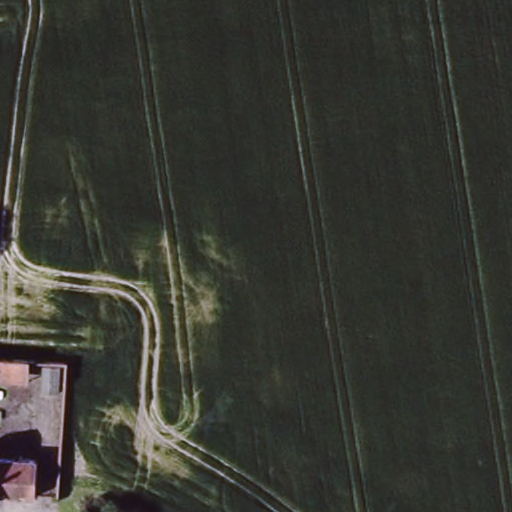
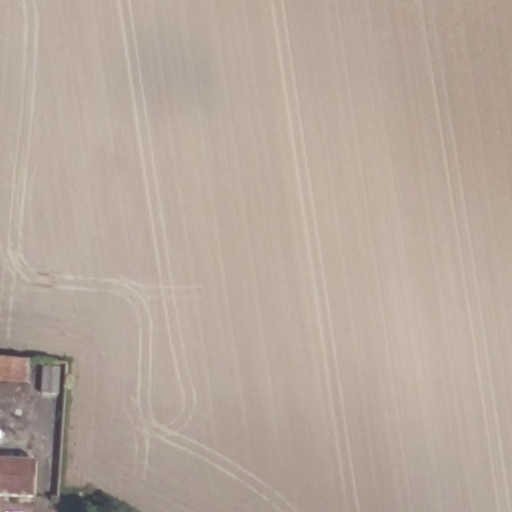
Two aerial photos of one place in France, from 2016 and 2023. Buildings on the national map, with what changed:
unchanged [(0,351),(38,352),(37,385),(0,383),(0,351)]
unchanged [(42,501),(0,498),(0,450),(42,453),(42,501)]

